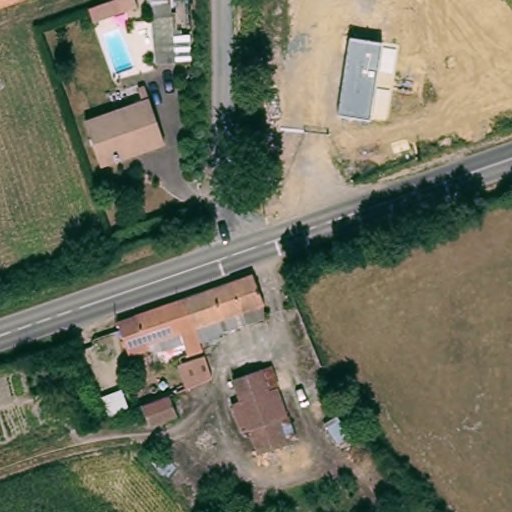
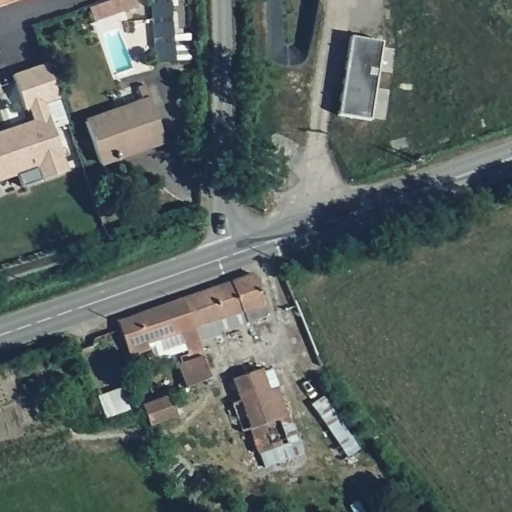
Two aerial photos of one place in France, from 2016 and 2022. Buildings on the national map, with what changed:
unchanged [(3,5),(0,6),(0,0),(18,0),(3,5)]
unchanged [(111,0),(118,0),(122,12),(93,22),(89,7),(111,0)]
unchanged [(168,61),(168,62),(148,64),(144,0),(172,0),(173,34),(189,33),(191,60),(168,61)]
unchanged [(350,37),(382,42),(370,121),(338,115),(350,37)]
new [(29,109),(25,110),(13,75),(47,63),(59,98),(45,103),(68,171),(42,180),(38,168),(0,181),(0,133),(34,121),(29,109)]
unchanged [(86,121),(143,101),(138,87),(145,85),(164,141),(150,146),(149,145),(135,150),(134,145),(117,151),(119,156),(100,162),(86,121)]
unchanged [(257,274),(269,304),(268,305),(269,317),(251,323),(225,331),(225,333),(204,340),(200,328),(198,329),(187,298),(236,281),(257,274)]
unchanged [(193,355),(188,341),(155,352),(158,361),(138,368),(122,321),(187,298),(198,329),(200,328),(204,340),(207,350),(193,355)]
unchanged [(279,419),(288,443),(258,454),(249,430),(241,432),(231,403),(239,400),(232,378),(233,378),(233,375),(229,364),(236,362),(254,355),(259,368),(262,369),(271,365),(277,386),(287,416),(279,419)]
unchanged [(182,365),(206,356),(209,356),(217,377),(191,389),(182,365)]
unchanged [(176,390),(183,410),(154,421),(146,401),(176,390)]
demolished [(221,502),(207,511),(156,455),(171,447),(221,502)]

